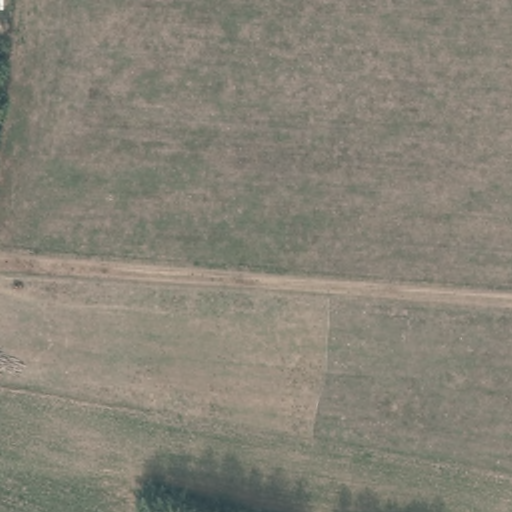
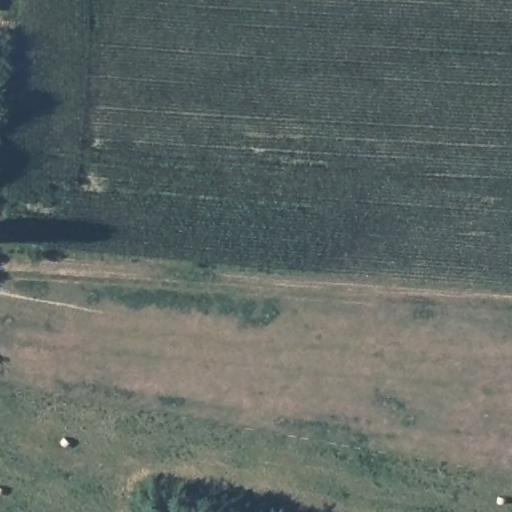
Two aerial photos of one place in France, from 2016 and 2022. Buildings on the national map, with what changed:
unchanged [(1,2),(0,16),(0,0),(9,0),(9,3),(1,2)]

